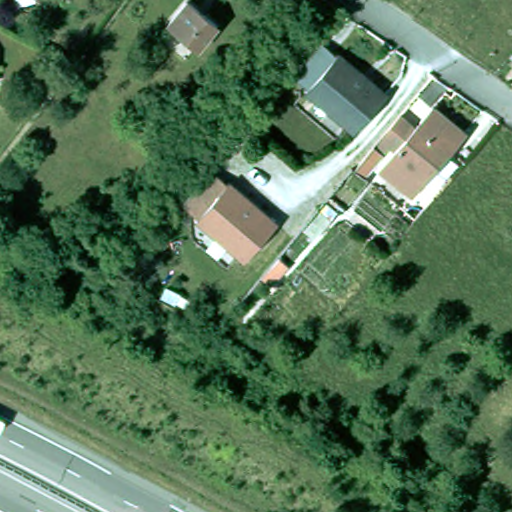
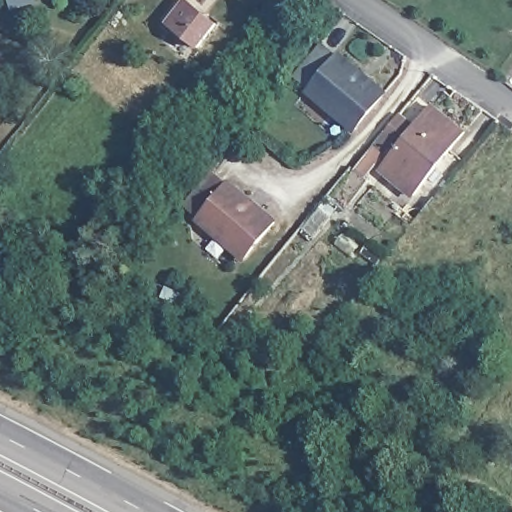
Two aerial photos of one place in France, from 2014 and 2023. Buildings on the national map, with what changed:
unchanged [(180,34),(168,24),(186,1),(198,10),(216,24),(196,47),(180,34)]
unchanged [(311,92),(314,90),(298,77),(324,45),(341,58),(343,55),(368,75),(374,81),(390,94),(360,132),(311,92)]
unchanged [(358,167),(378,143),(404,112),(421,125),(437,104),(468,131),(417,194),(384,167),(399,150),(393,145),(388,151),(368,176),(358,167)]
unchanged [(183,204),(210,171),(226,185),(228,181),(253,202),(259,207),(277,222),(245,260),(197,220),(200,217),(183,204)]

